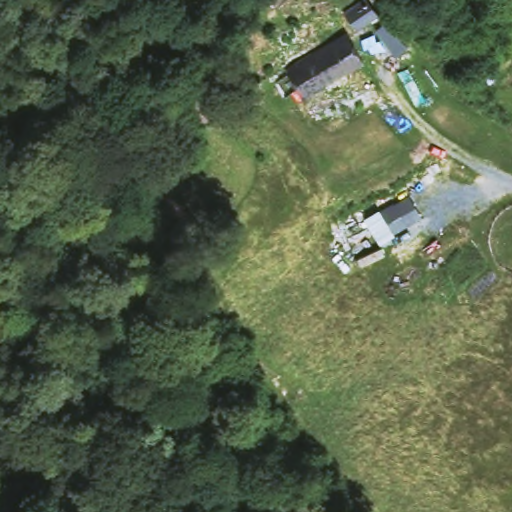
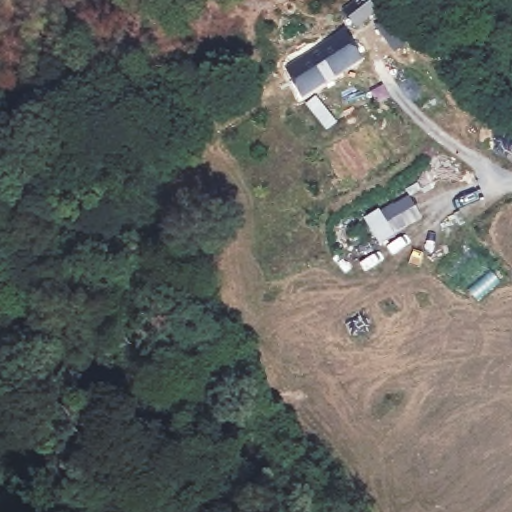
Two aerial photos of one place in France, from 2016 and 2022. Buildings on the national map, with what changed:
unchanged [(338,11),(359,0),(364,0),(375,18),(352,33),(338,11)]
unchanged [(279,72),(342,33),(362,68),(297,103),(279,72)]
unchanged [(380,243),(365,218),(408,195),(422,218),(380,243)]

